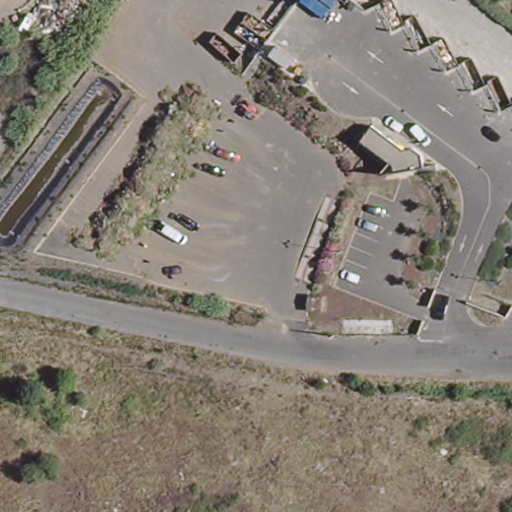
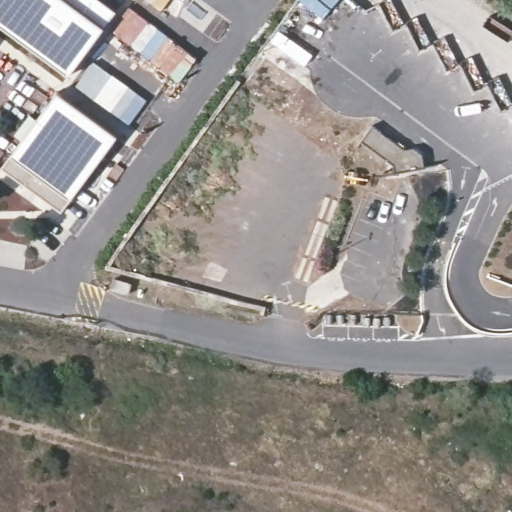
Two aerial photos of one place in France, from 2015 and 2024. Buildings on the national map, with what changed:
new [(105,29),(71,74),(0,23),(0,0),(100,0),(117,12),(105,29)]
new [(147,101),(129,124),(77,85),(94,61),(147,101)]
new [(118,136),(62,212),(4,169),(58,93),(118,136)]
unchanged [(404,148),(414,143),(445,169),(430,173),(423,165),(396,172),(359,143),(374,122),(404,148)]

